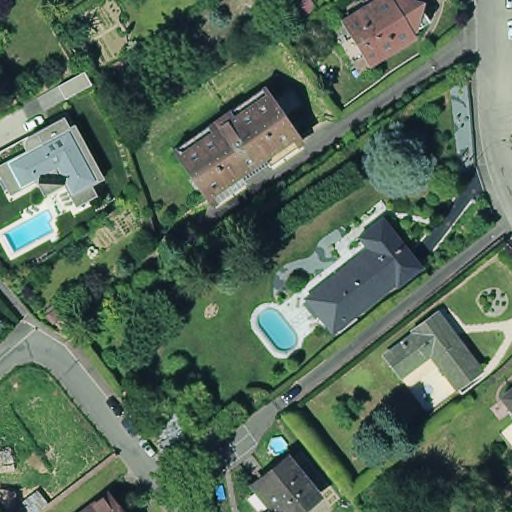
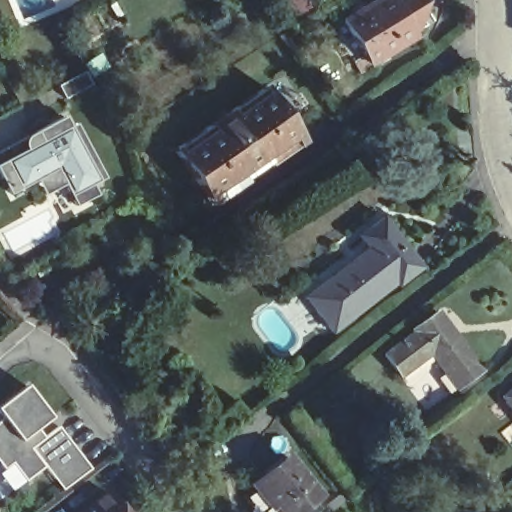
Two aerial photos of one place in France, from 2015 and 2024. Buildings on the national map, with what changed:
unchanged [(419,41),(374,69),(346,26),(387,0),(394,0),(419,41)]
unchanged [(270,159),(264,154),(238,174),(243,179),(211,202),(177,155),(268,89),(301,135),(270,159)]
unchanged [(12,145),(60,117),(103,194),(77,211),(63,191),(45,202),(28,184),(2,200),(0,195),(0,165),(16,156),(12,145)]
unchanged [(402,292),(400,289),(338,338),(329,326),(336,320),(320,299),(374,256),(364,244),(388,227),(425,274),(402,292)]
unchanged [(459,392),(432,358),(403,380),(387,359),(416,336),(416,333),(438,316),(454,337),(458,335),(487,373),(459,392)]
new [(58,426),(91,468),(62,490),(43,468),(27,481),(13,463),(3,469),(0,464),(0,418),(0,417),(0,404),(26,385),(50,418),(34,430),(44,437),(58,426)]
unchanged [(498,396),(512,385),(512,414),(498,396)]
unchanged [(279,512),(270,502),(266,504),(249,483),(283,455),(313,492),(288,512),(279,512)]
unchanged [(104,512),(79,512),(96,500),(104,512)]

